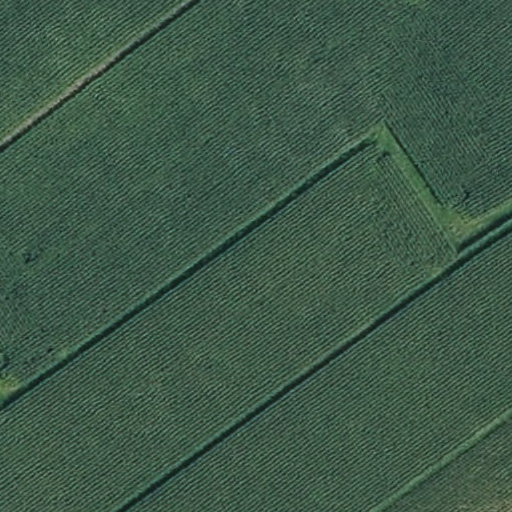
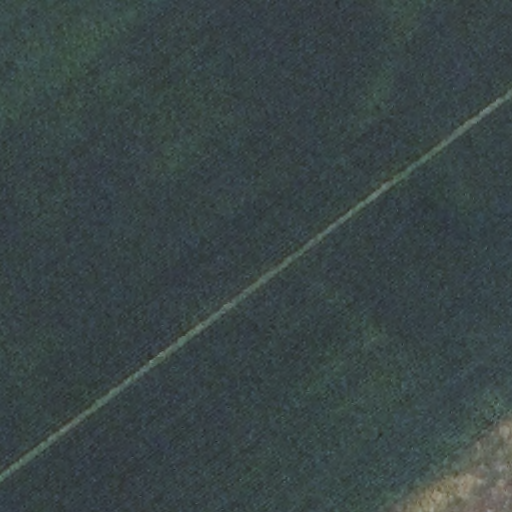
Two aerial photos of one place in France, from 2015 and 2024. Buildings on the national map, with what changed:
[]

